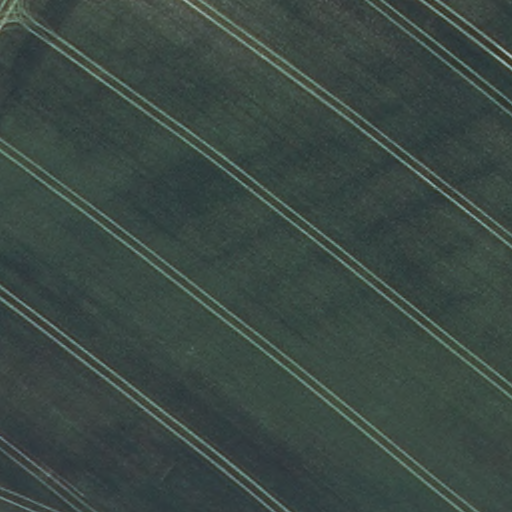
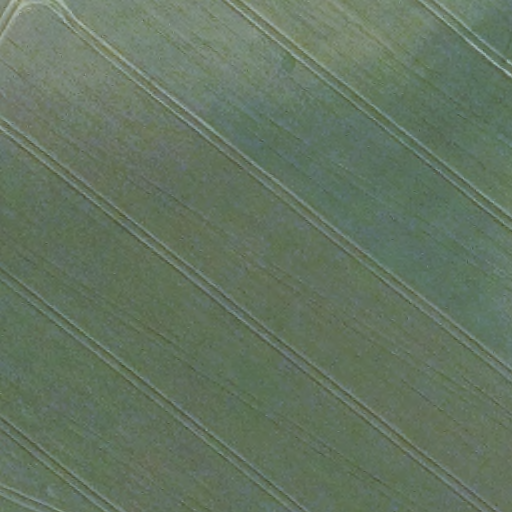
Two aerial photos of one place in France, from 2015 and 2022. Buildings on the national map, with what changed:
[]

